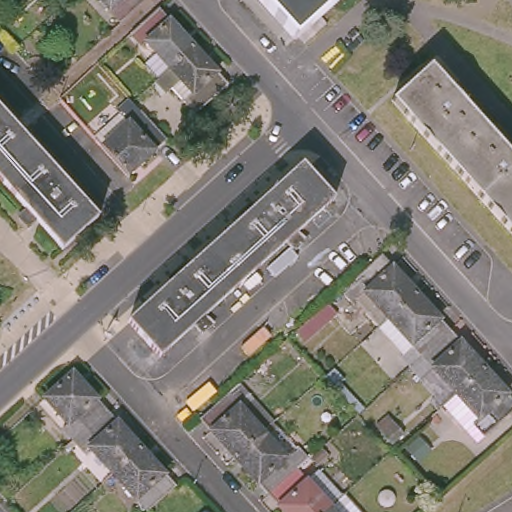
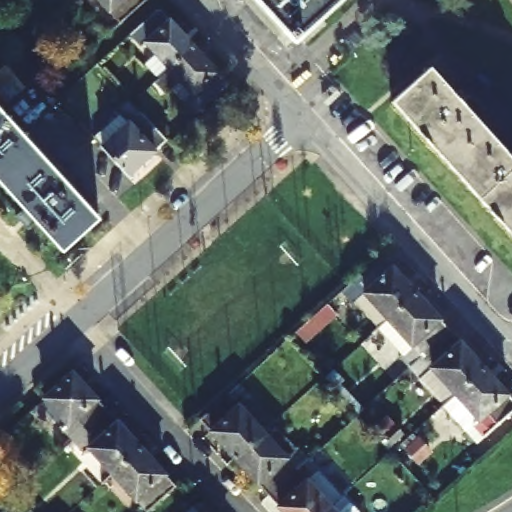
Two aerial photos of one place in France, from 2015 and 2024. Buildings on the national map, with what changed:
unchanged [(111,18),(95,0),(131,0),(111,18)]
unchanged [(319,20),(296,41),(259,0),(341,0),(319,20)]
unchanged [(148,44),(143,47),(131,34),(160,7),(194,46),(170,67),(148,44)]
unchanged [(194,46),(228,84),(199,110),(188,97),(192,92),(170,67),(194,46)]
unchanged [(512,156),(512,232),(394,102),(433,68),(512,156)]
unchanged [(19,215),(28,207),(0,177),(0,109),(98,219),(64,249),(38,220),(30,227),(19,215)]
unchanged [(161,145),(150,155),(123,180),(98,152),(125,127),(137,117),(161,145)]
demolished [(207,315),(196,325),(160,357),(129,322),(303,166),(334,201),(299,232),(287,242),(207,315)]
unchanged [(389,318),(354,280),(383,255),(417,292),(389,318)]
unchanged [(423,356),(389,318),(417,292),(451,330),(423,356)]
unchanged [(433,367),(422,378),(411,366),(423,356),(451,330),(486,368),(457,394),(433,367)]
unchanged [(486,368),(512,398),(512,414),(487,437),(475,424),(474,423),(471,427),(466,427),(449,407),(447,410),(444,406),(457,394),(486,368)]
unchanged [(64,429),(68,425),(45,398),(73,372),(108,411),(75,441),(64,429)]
unchanged [(236,458),(200,419),(228,393),(264,432),(236,458)]
unchanged [(113,474),(92,451),(87,455),(75,441),(108,411),(142,448),(113,474)]
unchanged [(298,470),(269,496),(236,458),(264,432),(298,470)]
unchanged [(177,487),(149,512),(147,512),(113,474),(142,448),(177,487)]
unchanged [(327,512),(284,512),(269,496),(298,470),(331,507),(327,512)]
unchanged [(327,512),(331,507),(335,512),(327,512)]

